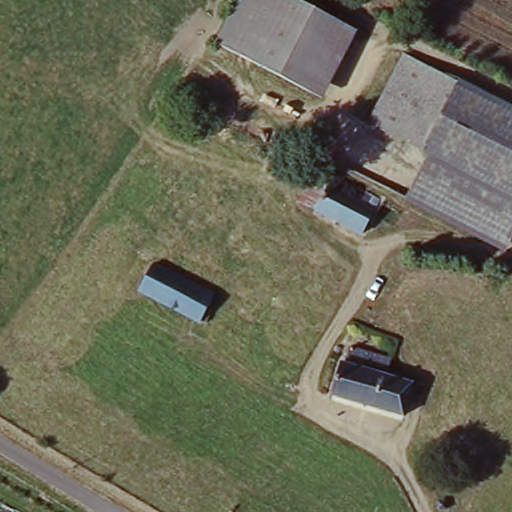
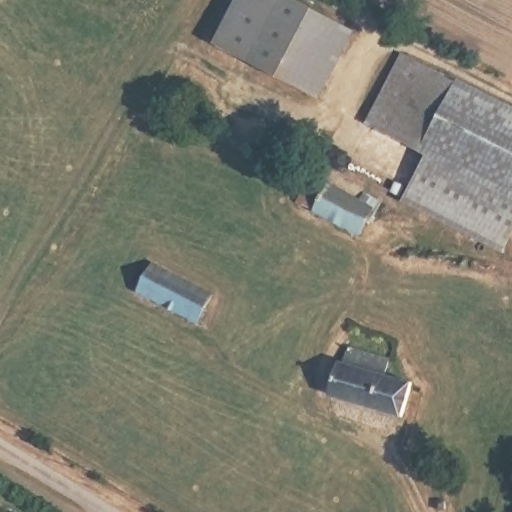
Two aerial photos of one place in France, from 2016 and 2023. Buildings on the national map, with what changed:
unchanged [(261,0),(305,0),(364,31),(329,98),(235,49),(261,0)]
unchanged [(369,122),(403,56),(462,86),(464,84),(512,108),(512,196),(428,153),(369,122)]
unchanged [(512,196),(512,240),(505,252),(404,202),(428,153),(512,196)]
unchanged [(368,206),(371,199),(384,205),(366,240),(320,216),(335,189),(368,206)]
unchanged [(144,291),(159,264),(218,295),(204,322),(144,291)]
unchanged [(408,417),(337,396),(346,362),(350,364),(355,347),(395,358),(390,375),(417,383),(408,417)]

